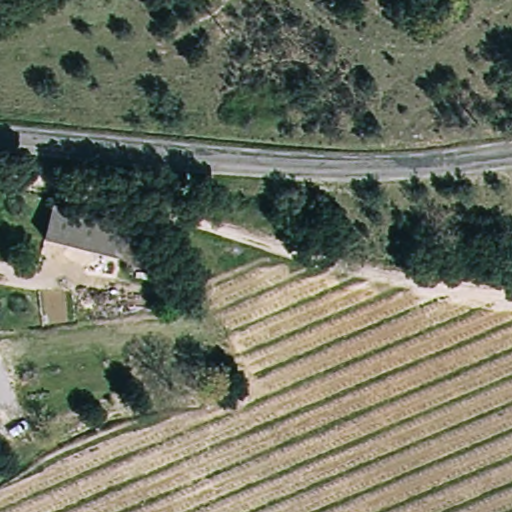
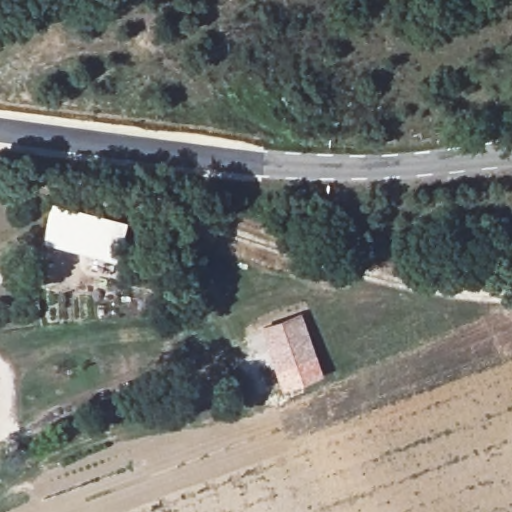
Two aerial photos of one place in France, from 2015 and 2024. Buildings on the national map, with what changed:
unchanged [(120,218),(116,257),(43,250),(47,211),(120,218)]
new [(321,375),(282,390),(260,327),(302,312),(321,375)]

